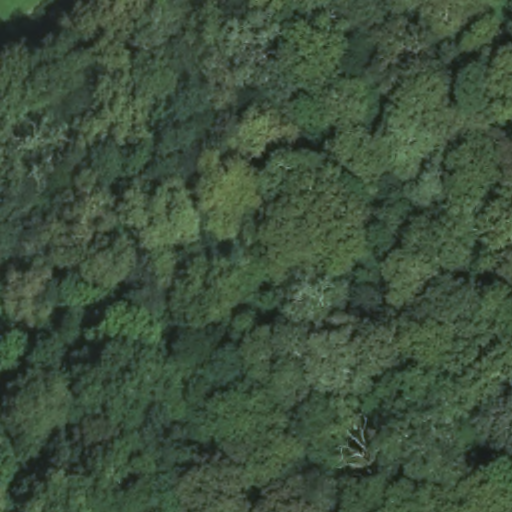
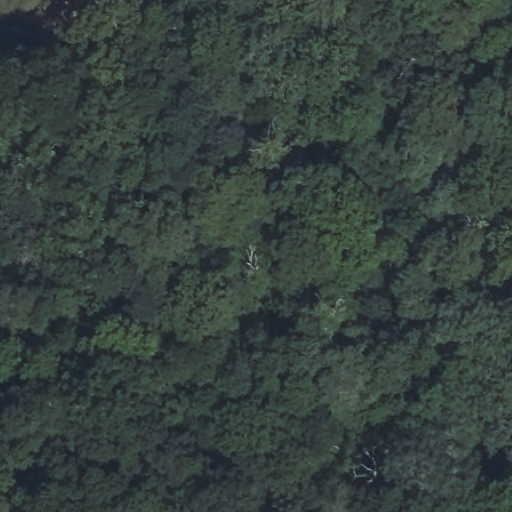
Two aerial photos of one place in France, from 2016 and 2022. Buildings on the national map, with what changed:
[]

